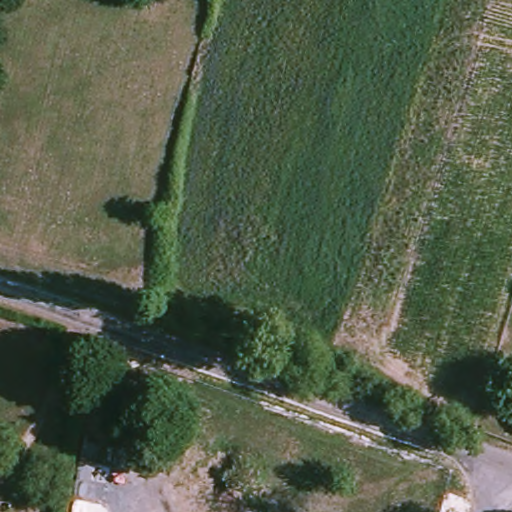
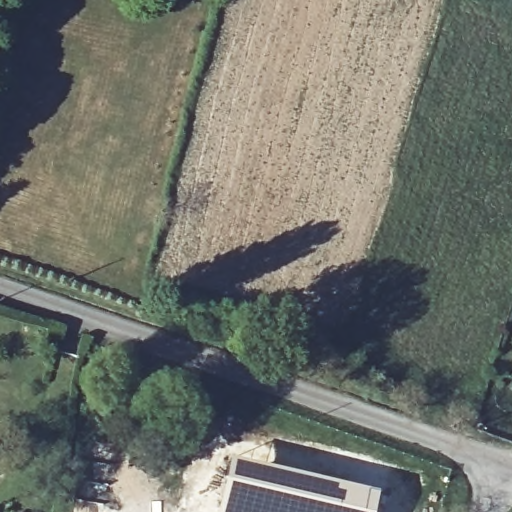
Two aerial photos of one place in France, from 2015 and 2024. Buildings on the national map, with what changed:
new [(301,473),(378,491),(373,512),(219,512),(230,459),(301,473)]

